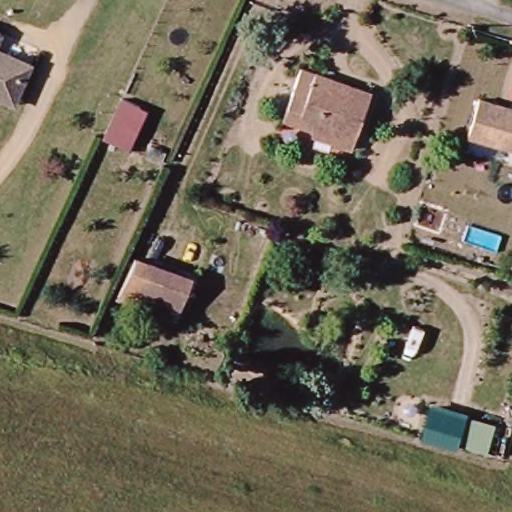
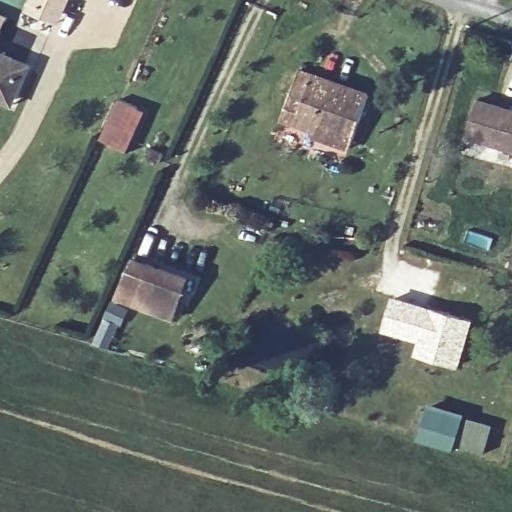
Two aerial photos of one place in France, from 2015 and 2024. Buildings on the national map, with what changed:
new [(26,10),(30,0),(71,0),(61,24),(26,10)]
unchanged [(3,35),(0,42),(0,34),(3,35)]
unchanged [(0,100),(0,53),(32,67),(17,102),(15,106),(0,100)]
unchanged [(277,115),(284,95),(300,99),(310,74),(370,95),(351,147),(331,140),(332,135),(277,115)]
unchanged [(148,112),(130,152),(103,139),(120,100),(148,112)]
unchanged [(512,148),(470,136),(480,100),(512,109),(512,148)]
unchanged [(485,231),(478,250),(467,246),(473,230),(485,231)]
unchanged [(189,321),(127,305),(142,270),(198,284),(189,321)]
new [(392,295),(475,318),(459,369),(413,355),(418,342),(381,331),(392,295)]
unchanged [(454,448),(418,437),(430,402),(466,412),(454,448)]
unchanged [(495,426),(488,453),(461,445),(467,419),(495,426)]

